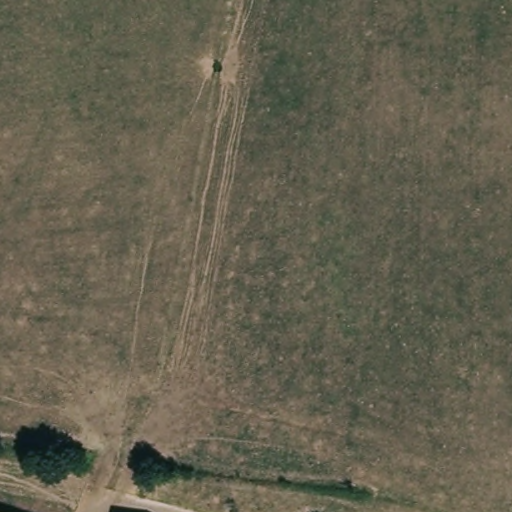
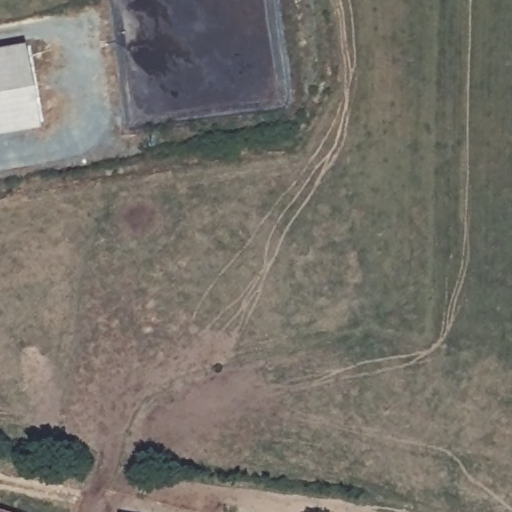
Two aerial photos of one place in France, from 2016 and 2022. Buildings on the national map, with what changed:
new [(39,125),(0,132),(0,46),(24,41),(39,125)]

